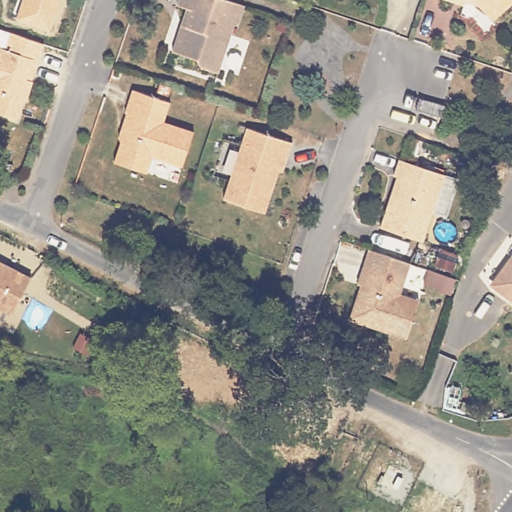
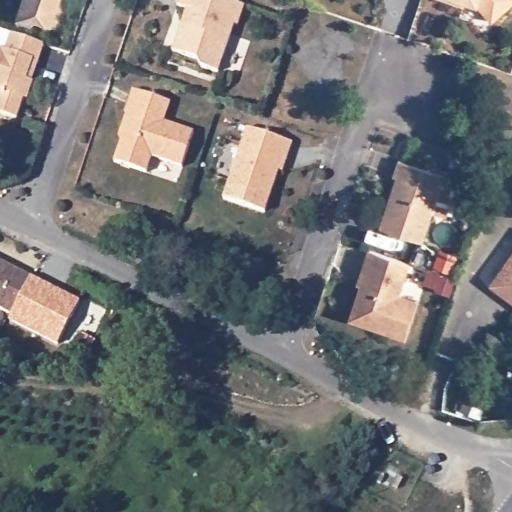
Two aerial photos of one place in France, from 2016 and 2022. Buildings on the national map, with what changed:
unchanged [(54,21),(21,9),(24,0),(61,0),(54,21)]
unchanged [(237,18),(221,67),(204,61),(200,54),(175,45),(182,26),(190,3),(181,0),(247,0),(240,20),(237,18)]
unchanged [(495,14),(482,0),(511,0),(495,14)]
unchanged [(27,92),(20,113),(0,106),(0,95),(4,85),(0,83),(0,22),(14,27),(47,37),(41,57),(35,75),(36,75),(31,93),(27,92)]
unchanged [(118,132),(125,108),(124,107),(131,84),(169,97),(162,116),(193,126),(181,162),(151,151),(145,168),(113,157),(120,136),(118,132)]
unchanged [(295,136),(289,154),(285,152),(267,207),(226,192),(250,122),(295,136)]
unchanged [(424,240),(382,226),(398,176),(395,175),(400,158),(446,173),(424,240)]
unchanged [(423,299),(411,337),(350,317),(363,277),(360,276),(371,242),(412,256),(402,287),(424,295),(423,299)]
new [(56,347),(8,322),(12,313),(0,308),(0,260),(81,301),(56,347)]
demolished [(9,318),(0,314),(0,262),(30,279),(9,318)]
unchanged [(499,291),(511,274),(511,268),(512,266),(512,301),(499,291)]

